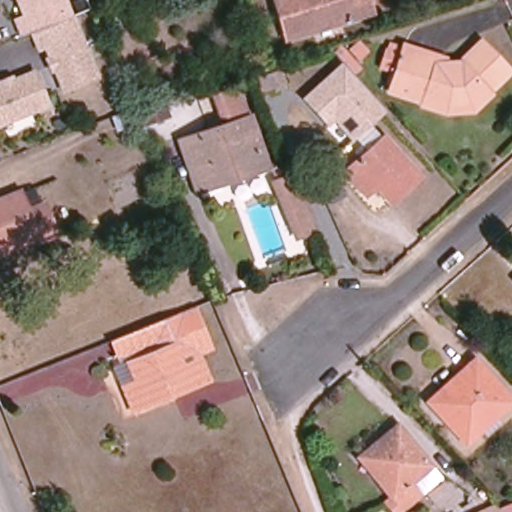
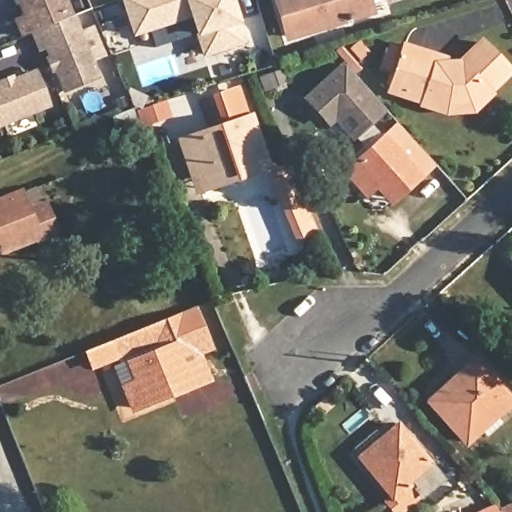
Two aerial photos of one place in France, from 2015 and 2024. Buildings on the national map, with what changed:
unchanged [(15,21),(26,16),(19,0),(62,0),(69,14),(21,33),(15,21)]
new [(119,0),(234,0),(246,45),(200,59),(188,21),(131,38),(119,0)]
unchanged [(287,40),(275,0),(365,0),(369,15),(287,40)]
unchanged [(70,18),(93,9),(111,53),(90,65),(70,18)]
unchanged [(90,65),(95,78),(64,91),(44,46),(38,50),(31,34),(69,19),(70,18),(90,65)]
unchanged [(411,62),(414,51),(444,61),(444,71),(469,69),(491,48),(512,70),(512,84),(498,98),(494,95),(479,109),(457,111),(434,104),(433,109),(408,101),(412,86),(404,84),(406,78),(392,73),(397,58),(411,62)]
unchanged [(351,141),(333,121),(325,127),(302,98),(342,61),(385,110),(351,141)]
unchanged [(264,93),(259,81),(281,73),(285,85),(264,93)]
unchanged [(46,106),(0,124),(0,87),(34,74),(46,106)]
unchanged [(178,141),(224,126),(214,98),(233,91),(259,169),(229,179),(226,169),(191,181),(178,141)]
unchanged [(118,134),(106,102),(128,96),(133,110),(164,100),(169,116),(118,134)]
unchanged [(376,182),(366,191),(345,168),(384,134),(419,173),(405,186),(401,181),(386,194),(376,182)]
unchanged [(299,238),(277,183),(293,176),(317,231),(299,238)]
unchanged [(39,235),(0,250),(0,199),(21,191),(31,216),(48,210),(56,233),(40,240),(39,235)]
unchanged [(198,353),(182,360),(189,379),(161,391),(165,400),(145,408),(144,405),(130,410),(122,388),(135,383),(128,364),(175,345),(172,337),(117,359),(110,342),(128,335),(181,314),(194,309),(210,348),(198,353)]
unchanged [(464,384),(459,377),(474,363),(509,403),(466,443),(436,410),(464,384)]
unchanged [(359,459),(397,427),(431,468),(411,484),(421,497),(403,512),(392,499),(359,459)]
unchanged [(494,503),(497,508),(512,502),(512,512),(474,512),(494,503)]

